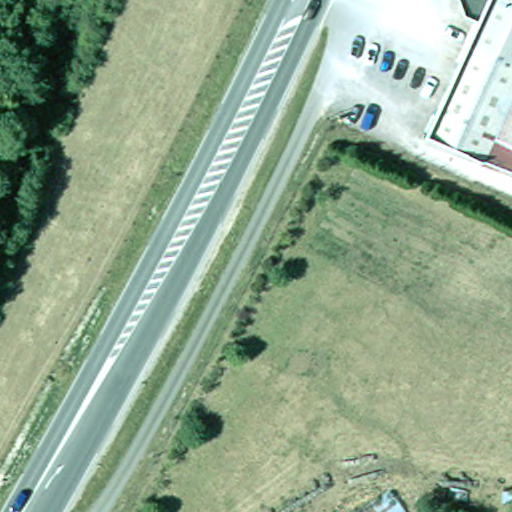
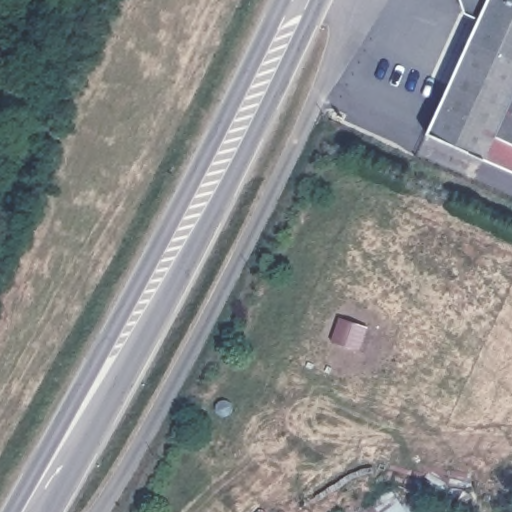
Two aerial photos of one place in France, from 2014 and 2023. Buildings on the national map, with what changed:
unchanged [(462,9),(458,0),(512,0),(512,159),(509,165),(424,126),(472,14),(462,9)]
unchanged [(392,485),(409,512),(351,512),(392,485)]
unchanged [(443,508),(446,512),(436,512),(443,508)]

